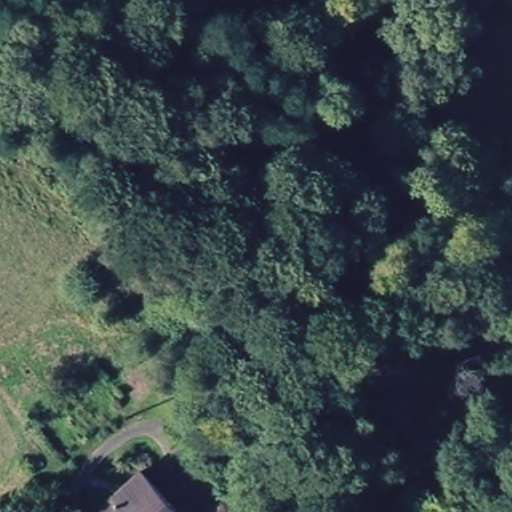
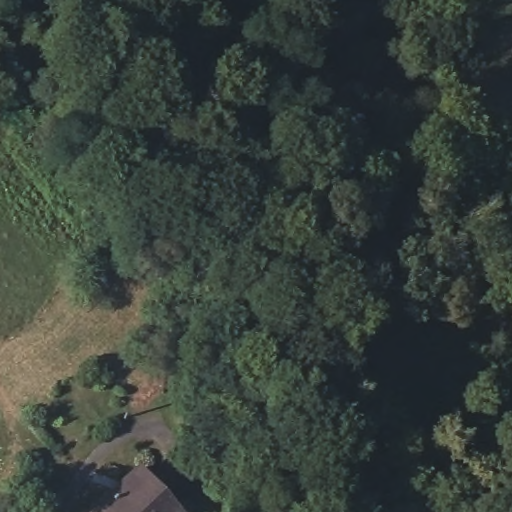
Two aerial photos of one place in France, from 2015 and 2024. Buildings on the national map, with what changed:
unchanged [(143,467),(183,512),(91,512),(90,511),(143,467)]

